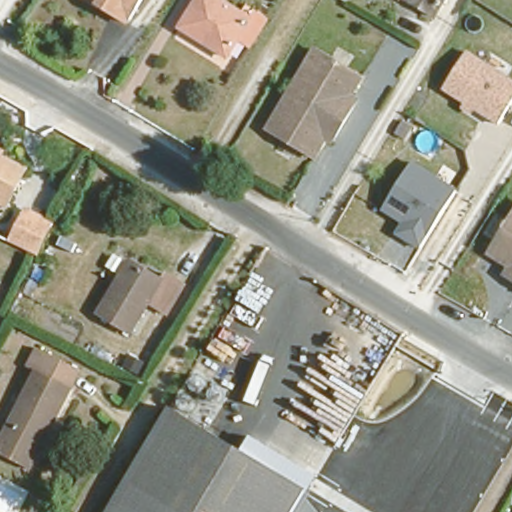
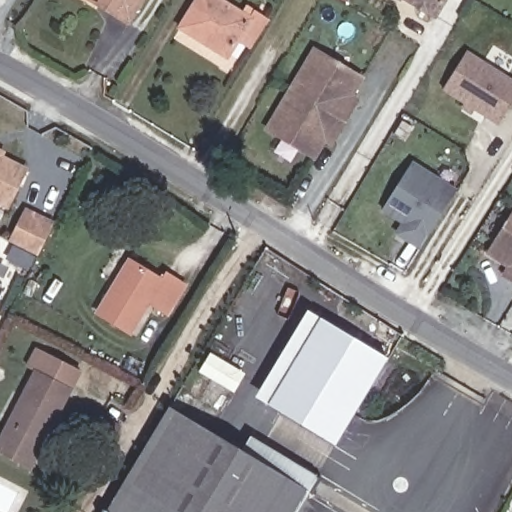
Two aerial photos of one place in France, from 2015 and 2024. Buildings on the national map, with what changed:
unchanged [(131,16),(102,0),(140,0),(131,16)]
unchanged [(256,24),(247,41),(237,36),(225,59),(183,34),(178,31),(197,0),(238,0),(253,10),(249,20),(256,24)]
unchanged [(426,8),(423,15),(409,6),(413,0),(442,0),(434,13),(426,8)]
unchanged [(443,91),(468,52),(512,80),(512,105),(499,125),(443,91)]
unchanged [(304,160),(301,158),(257,131),(305,53),(348,79),(353,82),(336,111),(342,113),(321,147),(313,143),(304,160)]
unchanged [(7,205),(0,201),(0,155),(25,166),(7,205)]
unchanged [(423,250),(396,235),(401,224),(383,213),(412,163),(459,190),(423,250)]
unchanged [(12,233),(25,205),(49,218),(35,245),(12,233)]
unchanged [(505,239),(512,228),(512,264),(495,255),(505,239)]
unchanged [(145,302),(127,331),(93,312),(110,284),(117,288),(132,263),(159,279),(166,269),(186,282),(166,314),(145,302)]
unchanged [(512,277),(512,284),(509,283),(512,277)]
new [(306,311),(386,359),(335,445),(255,396),(306,311)]
unchanged [(53,412),(40,431),(46,435),(24,469),(0,454),(0,434),(38,367),(33,365),(44,345),(85,371),(59,414),(53,412)]
unchanged [(101,512),(170,404),(306,482),(288,512),(101,512)]
unchanged [(36,512),(18,512),(22,504),(36,512)]

